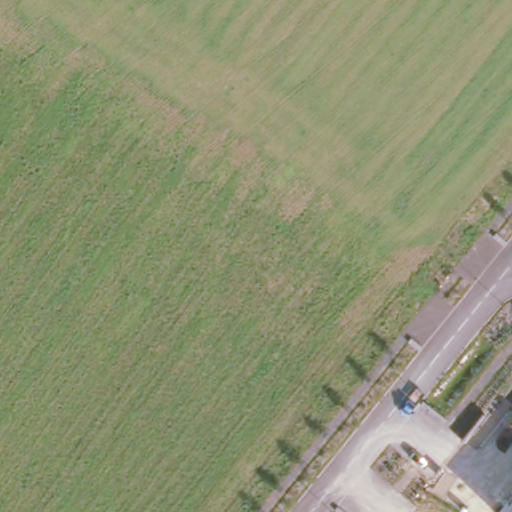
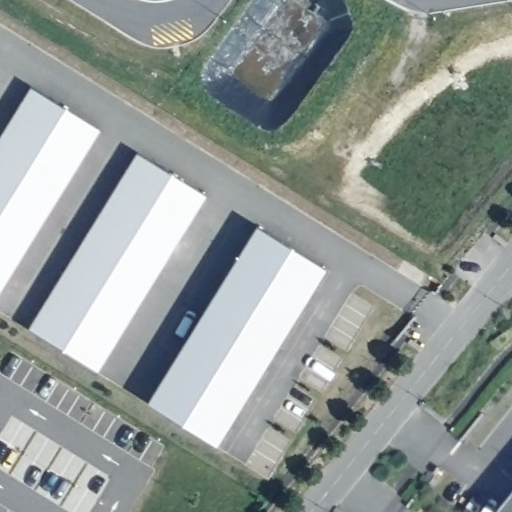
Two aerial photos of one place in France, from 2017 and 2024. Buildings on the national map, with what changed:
new [(0,303),(0,134),(30,89),(104,139),(0,303)]
new [(96,381),(18,327),(137,150),(211,199),(96,381)]
new [(211,456),(132,402),(251,224),(326,273),(211,456)]
unchanged [(512,512),(501,512),(512,498),(512,512)]

